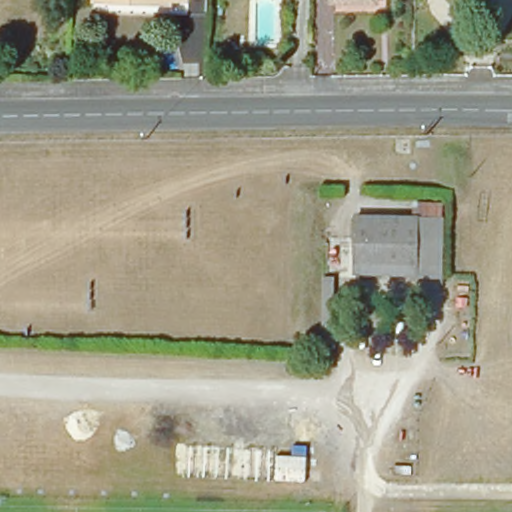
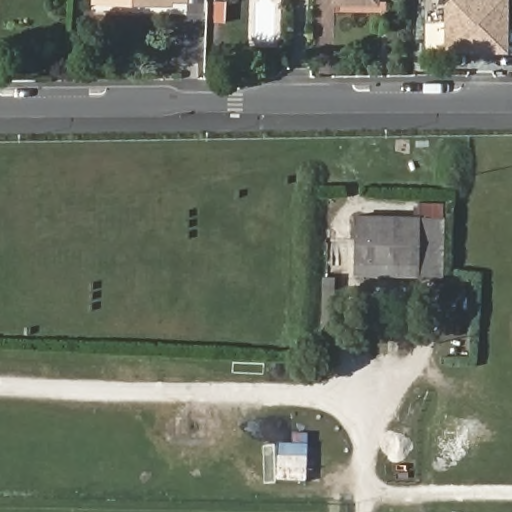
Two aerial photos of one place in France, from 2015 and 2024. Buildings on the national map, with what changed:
unchanged [(96,0),(185,0),(185,2),(170,2),(170,7),(131,5),(96,3),(96,0)]
unchanged [(332,3),(332,0),(375,0),(375,3),(332,3)]
new [(509,53),(445,52),(444,52),(444,3),(447,0),(509,0),(509,53)]
unchanged [(450,224),(447,282),(352,278),(354,221),(450,224)]
unchanged [(332,352),(318,352),(319,275),(335,274),(332,352)]
unchanged [(272,479),(272,454),(303,455),(304,482),(272,479)]

